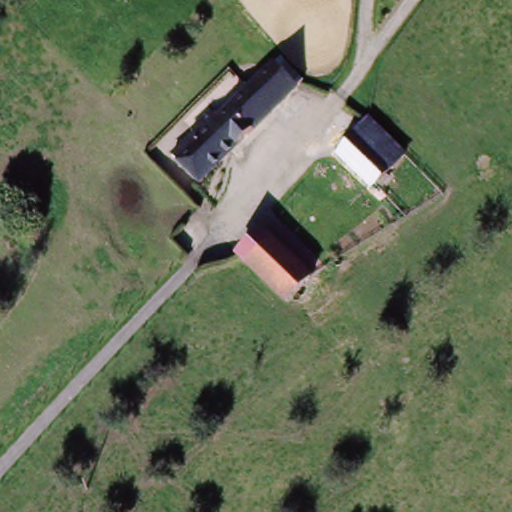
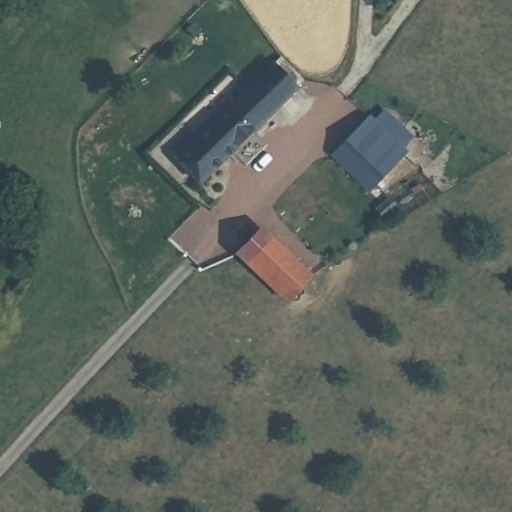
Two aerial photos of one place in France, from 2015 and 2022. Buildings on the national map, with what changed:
unchanged [(225,94),(232,87),(238,95),(271,61),(297,85),(185,195),(159,168),(185,142),(180,137),(188,131),(195,137),(232,101),(225,94)]
unchanged [(368,117),(402,155),(389,168),(352,133),(368,117)]
unchanged [(339,147),(352,133),(389,168),(375,182),(339,147)]
unchanged [(261,227),(310,273),(286,297),(262,272),(238,250),(261,227)]

